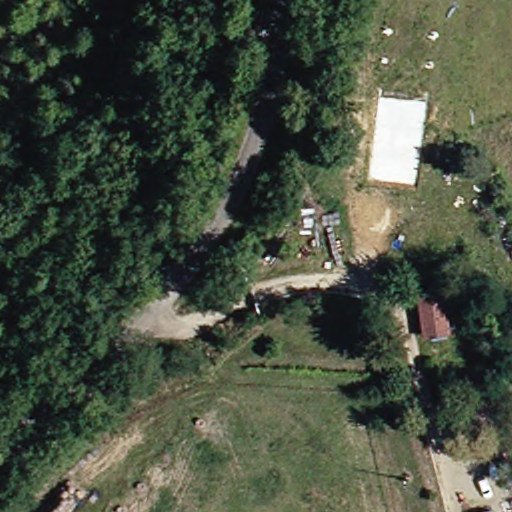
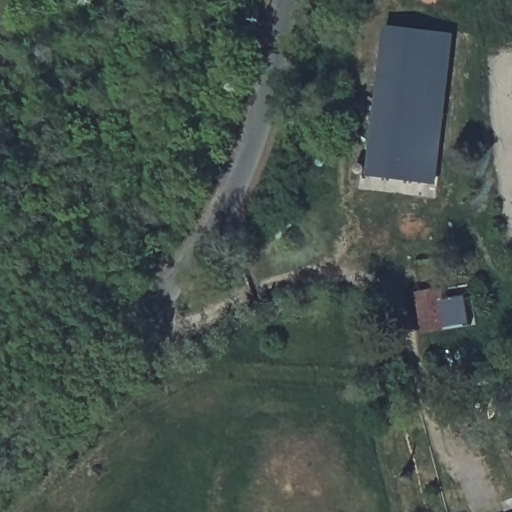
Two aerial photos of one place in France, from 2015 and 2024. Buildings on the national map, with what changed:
new [(387,25),(456,35),(437,186),(369,175),(387,25)]
unchanged [(457,326),(433,330),(427,305),(423,292),(447,286),(452,302),(457,326)]

